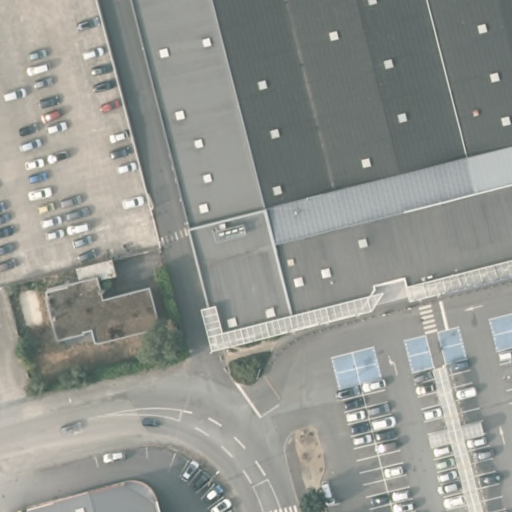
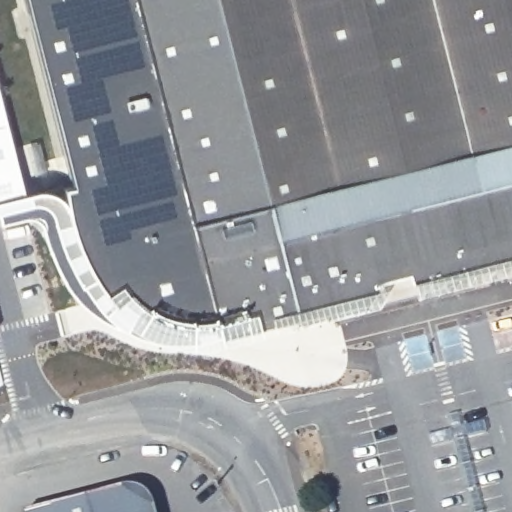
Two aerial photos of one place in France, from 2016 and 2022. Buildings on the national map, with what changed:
new [(200,322),(182,322),(160,315),(140,304),(126,292),(114,304),(95,280),(80,251),(69,223),(63,188),(71,186),(25,0),(135,0),(215,318),(200,322)]
unchanged [(292,316),(218,332),(135,0),(211,0),(292,316)]
unchanged [(494,265),(407,281),(404,267),(376,274),(362,298),(292,316),(211,0),(512,0),(512,260),(494,265)]
new [(0,199),(0,98),(24,193),(0,199)]
demolished [(116,256),(120,270),(100,275),(105,296),(154,283),(164,321),(99,338),(95,324),(60,334),(49,286),(82,277),(79,265),(116,256)]
unchanged [(124,484),(155,506),(157,512),(26,512),(25,509),(124,484)]

